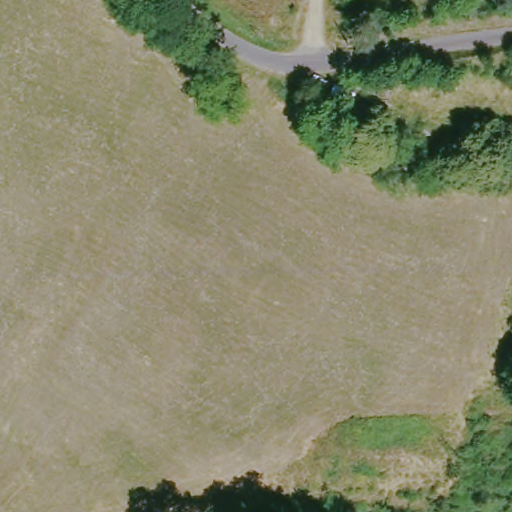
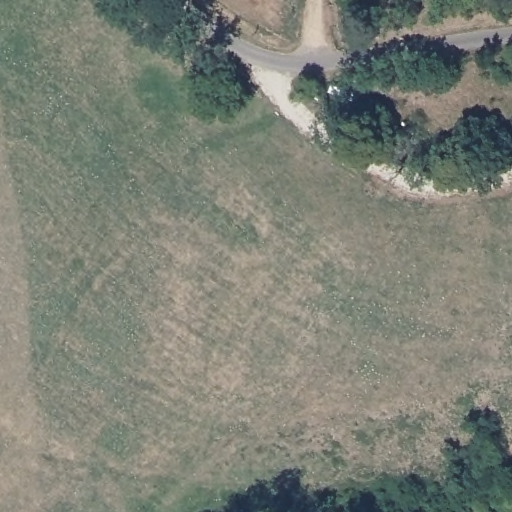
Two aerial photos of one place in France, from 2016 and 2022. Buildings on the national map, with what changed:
[]

